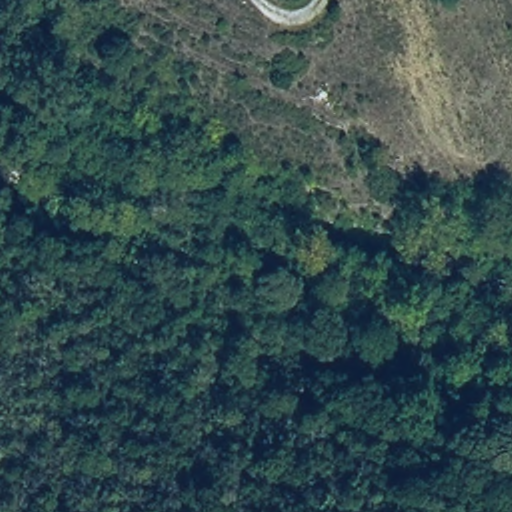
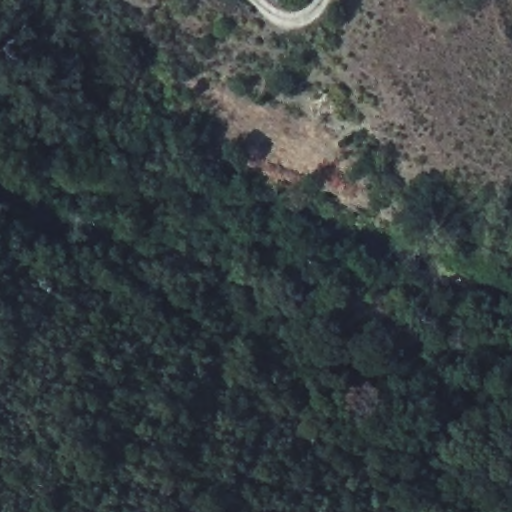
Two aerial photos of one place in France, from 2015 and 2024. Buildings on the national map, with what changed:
[]

